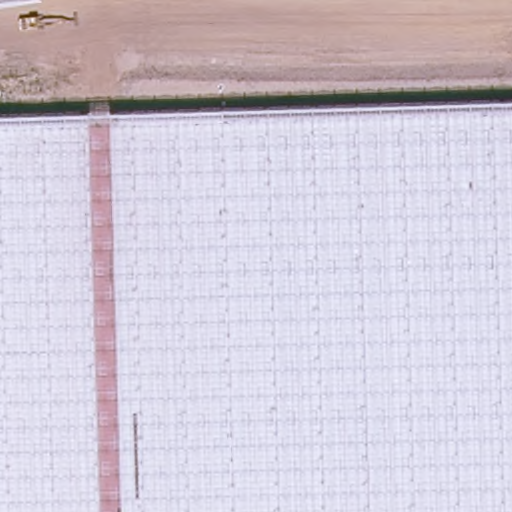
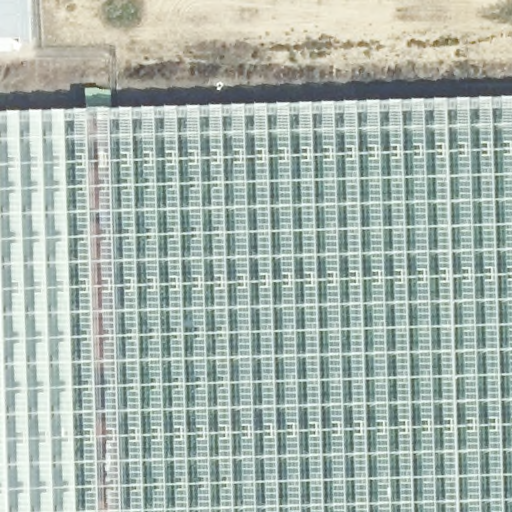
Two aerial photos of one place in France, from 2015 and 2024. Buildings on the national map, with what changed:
new [(31,40),(19,41),(20,49),(0,49),(0,0),(29,0),(31,40)]
unchanged [(512,104),(512,512),(0,512),(0,119),(512,104)]

